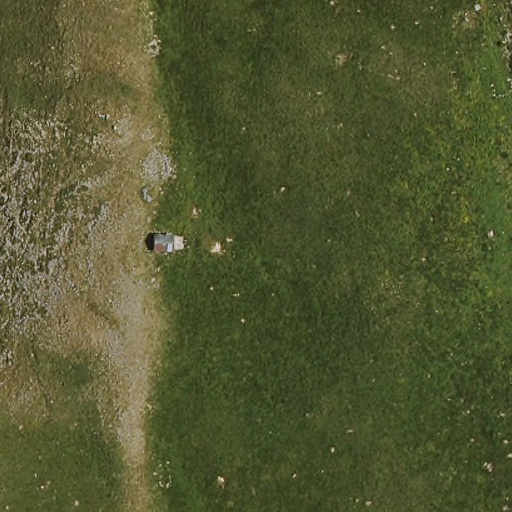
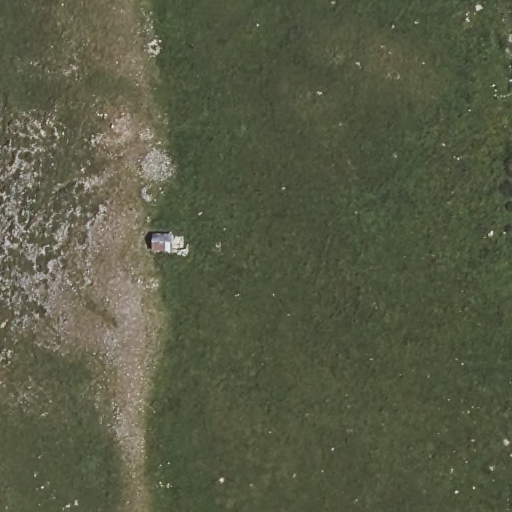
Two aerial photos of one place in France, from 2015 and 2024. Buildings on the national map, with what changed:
unchanged [(149,232),(166,231),(167,246),(152,249),(149,232)]

